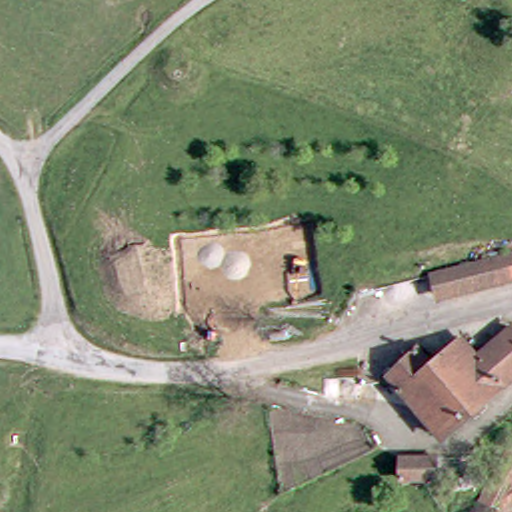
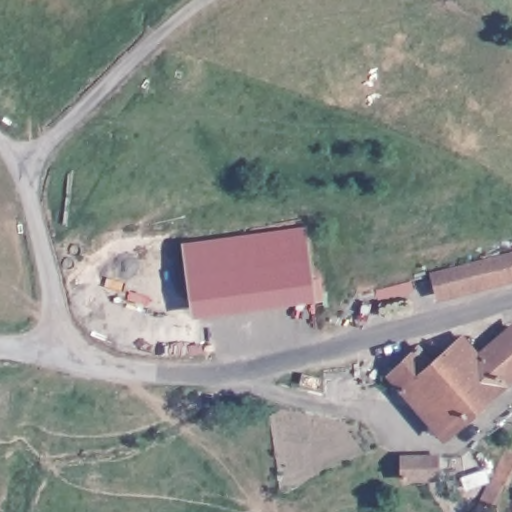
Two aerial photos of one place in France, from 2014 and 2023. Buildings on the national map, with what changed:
new [(305,226),(313,278),(321,276),(324,300),(315,302),(193,318),(183,243),(305,226)]
unchanged [(427,271),(491,253),(488,244),(512,237),(512,270),(433,293),(427,272),(427,271)]
demolished [(351,295),(345,273),(420,250),(427,271),(427,272),(351,295)]
unchanged [(414,351),(423,362),(437,348),(447,356),(468,338),(477,345),(498,324),(507,315),(512,319),(512,369),(443,440),(386,380),(414,351)]
demolished [(437,494),(457,493),(458,505),(458,512),(423,512),(422,499),(422,495),(437,494)]

